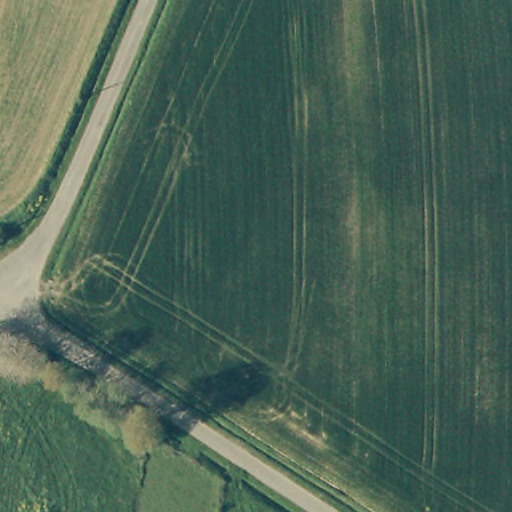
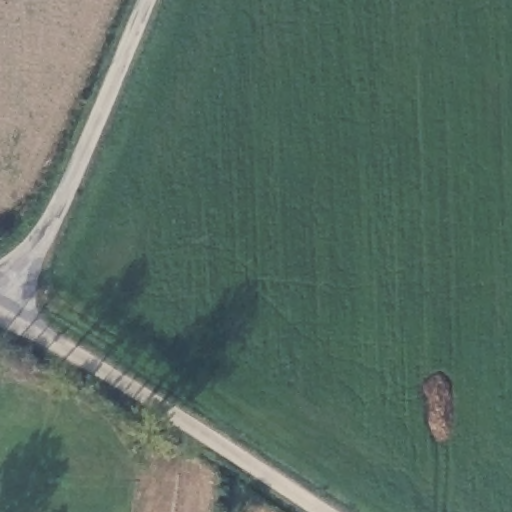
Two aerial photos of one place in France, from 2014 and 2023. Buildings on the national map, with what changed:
[]

